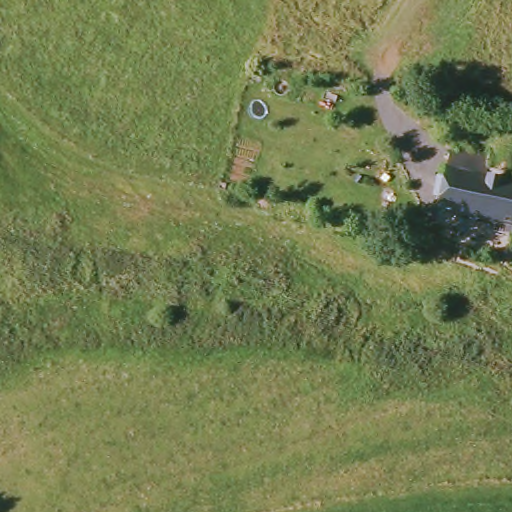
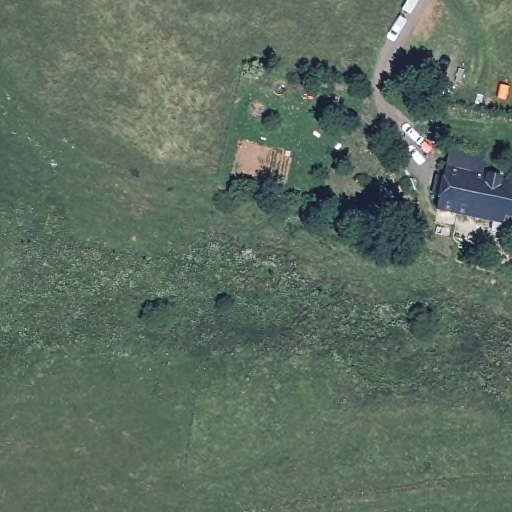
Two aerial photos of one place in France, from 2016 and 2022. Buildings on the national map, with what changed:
unchanged [(440,213),(450,157),(487,163),(483,185),(512,191),(512,228),(449,215),(440,213)]

